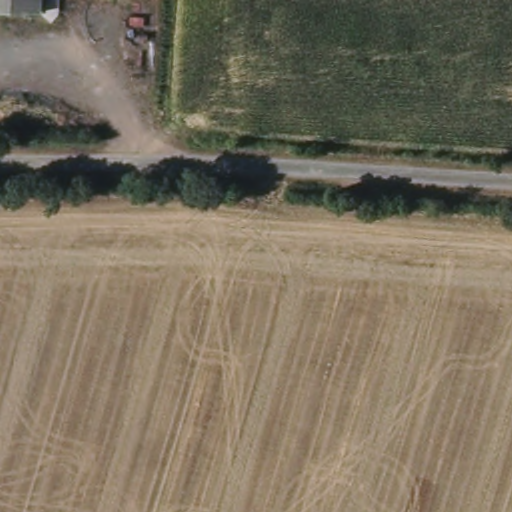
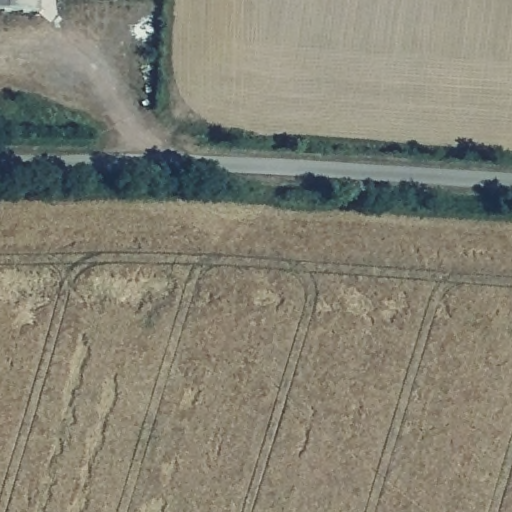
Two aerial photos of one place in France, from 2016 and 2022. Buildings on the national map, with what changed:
unchanged [(0,8),(0,0),(40,0),(39,9),(0,8)]

